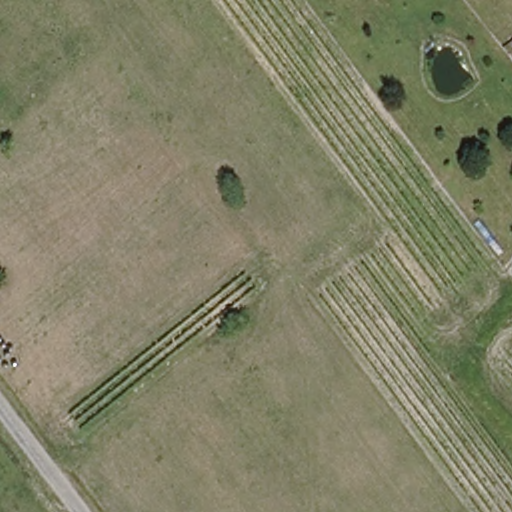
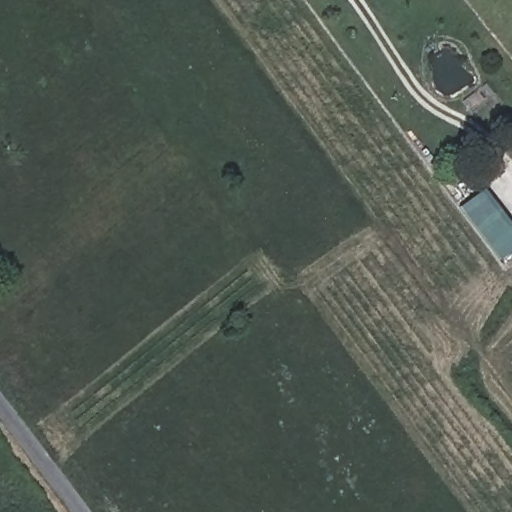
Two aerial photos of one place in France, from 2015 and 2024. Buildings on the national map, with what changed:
new [(484,188),(510,224),(512,222),(512,250),(498,260),(459,207),(484,188)]

